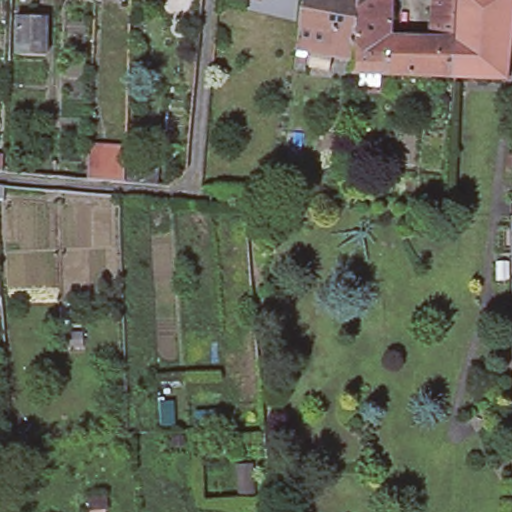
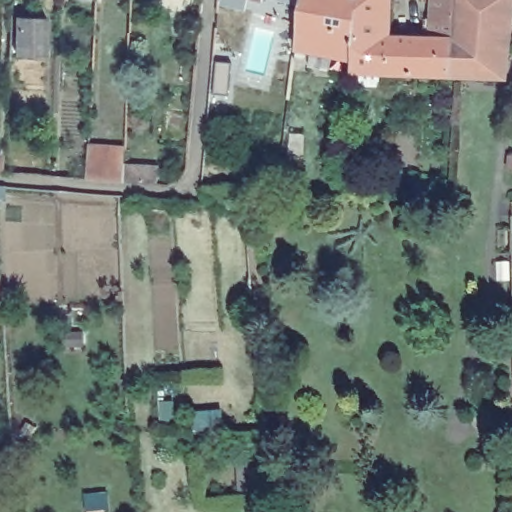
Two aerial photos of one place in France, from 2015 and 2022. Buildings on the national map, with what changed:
unchanged [(357,61),(301,49),(302,37),(303,37),(308,0),(360,0),(358,61),(357,61)]
unchanged [(425,74),(385,73),(385,85),(365,84),(365,72),(356,71),(357,61),(358,61),(360,0),(395,0),(393,38),(435,39),(438,0),(460,0),(456,76),(437,75),(436,85),(425,85),(425,74)]
unchanged [(512,0),(512,64),(510,79),(456,76),(460,0),(512,0)]
unchanged [(46,18),(46,56),(16,55),(16,17),(46,18)]
unchanged [(87,180),(88,145),(125,149),(125,164),(159,167),(157,186),(124,183),(87,180)]
unchanged [(508,169),(510,155),(512,156),(512,169),(508,169)]
unchanged [(378,182),(378,192),(365,192),(365,182),(378,182)]
unchanged [(4,198),(0,198),(0,186),(5,186),(4,198)]
unchanged [(496,262),(509,262),(510,280),(497,280),(496,262)]
unchanged [(221,410),(222,427),(197,429),(196,412),(221,410)]
unchanged [(206,444),(221,444),(222,454),(207,456),(206,444)]
unchanged [(15,473),(0,474),(0,462),(13,460),(15,473)]
unchanged [(253,471),(254,495),(239,496),(237,471),(253,471)]

